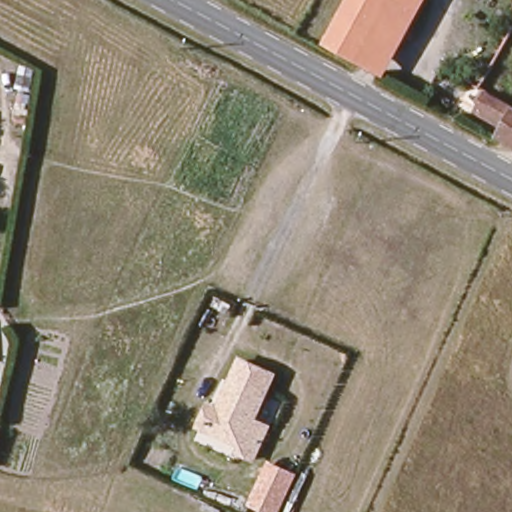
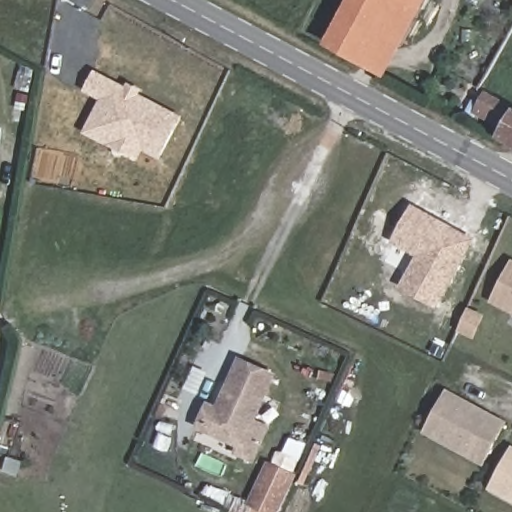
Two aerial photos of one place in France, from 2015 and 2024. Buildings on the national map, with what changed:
unchanged [(359,59),(350,54),(332,45),(356,0),(390,0),(359,59)]
unchanged [(390,0),(423,0),(386,72),(359,59),(390,0)]
new [(162,159),(146,150),(140,162),(85,133),(101,100),(85,92),(95,70),(127,86),(129,82),(143,90),(141,94),(184,116),(162,159)]
unchanged [(512,112),(512,145),(502,140),(508,129),(496,121),(504,108),(512,112)]
new [(477,239),(437,309),(399,288),(416,256),(392,243),(413,204),(477,239)]
new [(491,302),(512,261),(512,313),(491,302)]
new [(486,316),(475,340),(458,332),(469,308),(486,316)]
unchanged [(253,461),(234,453),(237,445),(197,429),(207,399),(215,403),(237,355),(276,372),(256,418),(269,425),(253,461)]
new [(485,467),(423,433),(448,389),(509,422),(485,467)]
new [(489,489),(512,446),(512,501),(489,489)]
unchanged [(262,512),(247,506),(268,461),(297,474),(280,512),(262,512)]

